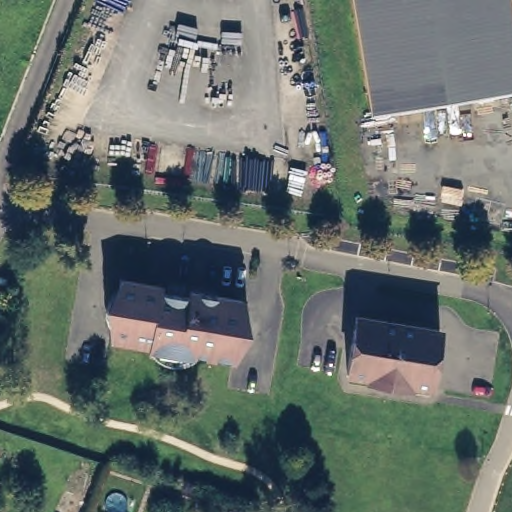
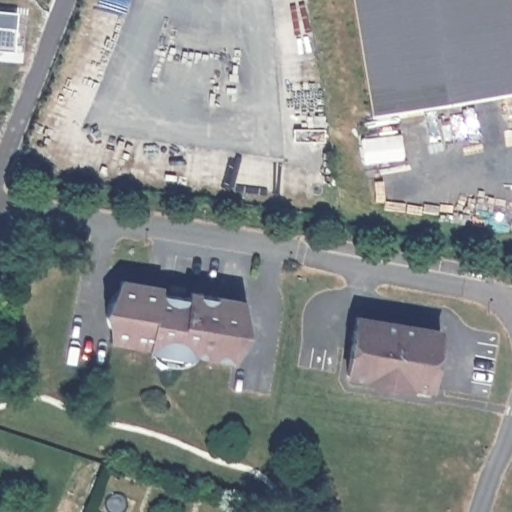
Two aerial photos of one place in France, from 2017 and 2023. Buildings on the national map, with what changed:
unchanged [(502,0),(512,95),(357,113),(347,0),(502,0)]
new [(17,53),(0,52),(0,15),(19,16),(17,53)]
unchanged [(156,283),(155,288),(184,293),(185,288),(237,297),(227,356),(187,350),(186,354),(144,346),(145,342),(105,335),(115,276),(156,283)]
unchanged [(354,313),(437,327),(427,384),(407,380),(406,384),(365,377),(365,373),(345,370),(354,313)]

